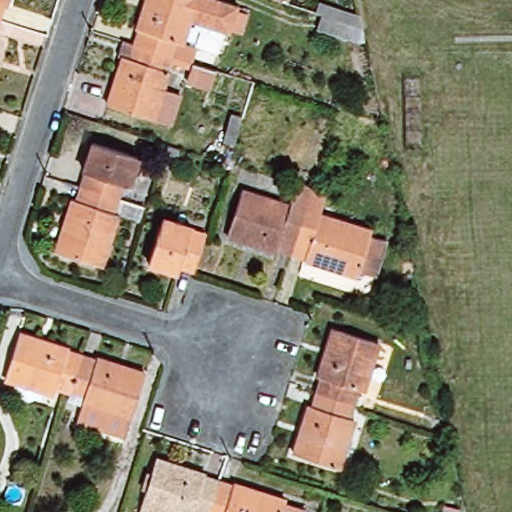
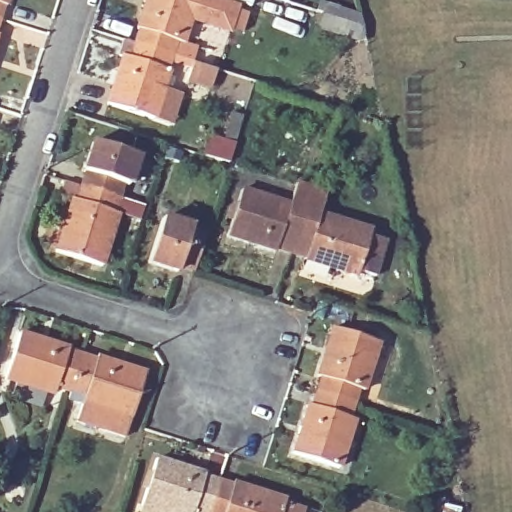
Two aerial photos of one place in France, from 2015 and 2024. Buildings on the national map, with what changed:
unchanged [(3,4),(0,2),(0,0),(5,0),(3,4)]
unchanged [(135,46),(139,33),(132,30),(142,0),(204,0),(231,9),(224,30),(196,22),(188,48),(177,46),(174,58),(135,46)]
unchanged [(169,75),(173,78),(160,119),(108,103),(122,59),(131,60),(135,46),(174,58),(169,75)]
unchanged [(83,189),(87,175),(81,172),(92,140),(141,156),(130,190),(123,189),(119,201),(83,189)]
unchanged [(290,250),(278,246),(274,252),(227,237),(243,190),(289,204),(295,183),(310,188),(290,250)]
unchanged [(324,194),(317,215),(366,231),(363,241),(378,247),(369,276),(356,272),(354,277),(302,261),(303,254),(290,250),(310,188),(324,194)]
unchanged [(114,217),(120,218),(103,270),(55,254),(72,201),(79,204),(83,189),(119,201),(114,217)]
unchanged [(177,271),(175,276),(144,266),(161,212),(192,222),(192,230),(207,234),(193,277),(177,271)]
unchanged [(313,396),(318,382),(313,379),(330,329),(378,345),(361,396),(354,394),(349,407),(313,396)]
unchanged [(69,398),(55,393),(52,399),(5,382),(20,336),(69,352),(67,358),(81,363),(69,398)]
unchanged [(78,423),(82,409),(67,404),(69,398),(81,363),(93,367),(95,361),(144,377),(128,425),(126,424),(122,437),(78,423)]
unchanged [(344,421),(351,423),(337,470),(289,455),(305,406),(309,407),(313,396),(349,407),(344,421)]
unchanged [(154,462),(202,478),(200,484),(212,488),(204,512),(137,512),(139,507),(154,462)]
unchanged [(226,493),(228,488),(277,504),(276,510),(283,512),(204,512),(212,488),(226,493)]

